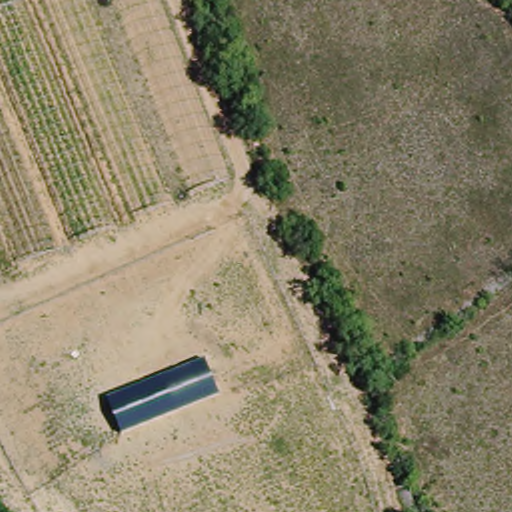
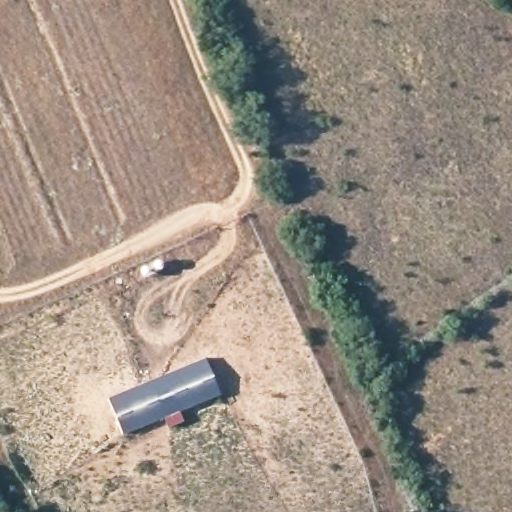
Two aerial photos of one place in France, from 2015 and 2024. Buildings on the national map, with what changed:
unchanged [(108,395),(205,357),(219,393),(122,433),(108,395)]

